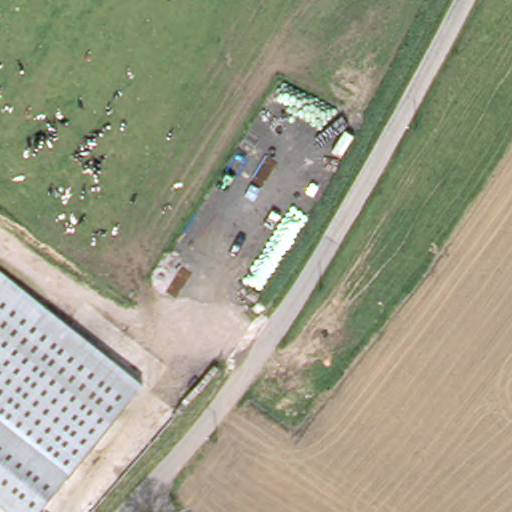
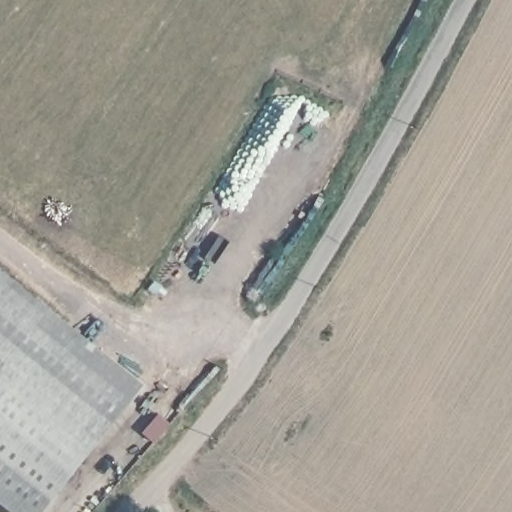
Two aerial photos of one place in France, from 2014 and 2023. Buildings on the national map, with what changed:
unchanged [(144,392),(127,414),(0,307),(0,272),(144,392)]
unchanged [(127,414),(43,512),(7,512),(0,506),(0,307),(127,414)]

